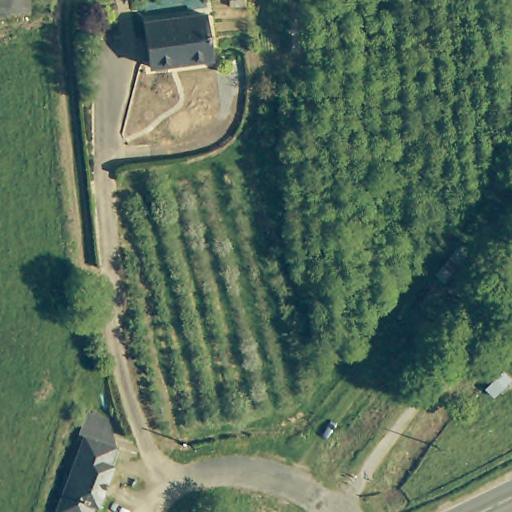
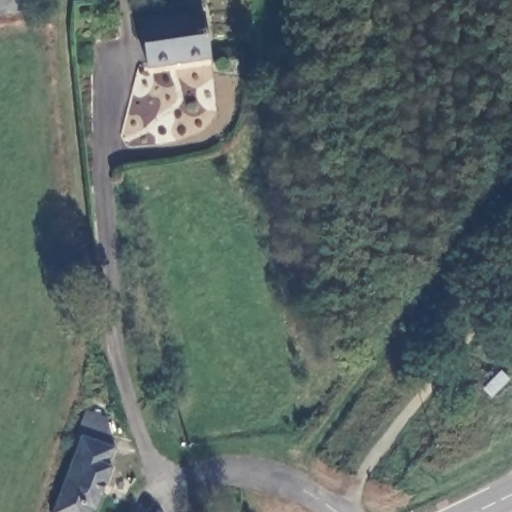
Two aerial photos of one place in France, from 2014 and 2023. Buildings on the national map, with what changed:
unchanged [(4,0),(4,14),(0,14),(0,0),(4,0)]
unchanged [(197,12),(204,56),(140,66),(133,23),(197,12)]
unchanged [(73,436),(78,408),(107,416),(112,451),(83,439),(73,436)]
unchanged [(70,458),(73,436),(83,439),(76,460),(86,464),(73,503),(93,510),(93,512),(52,512),(70,458)]
unchanged [(112,451),(106,468),(113,470),(98,512),(93,510),(73,503),(86,464),(76,460),(83,439),(112,451)]

